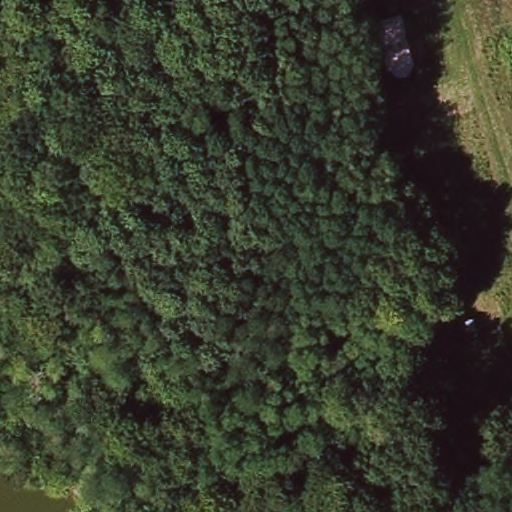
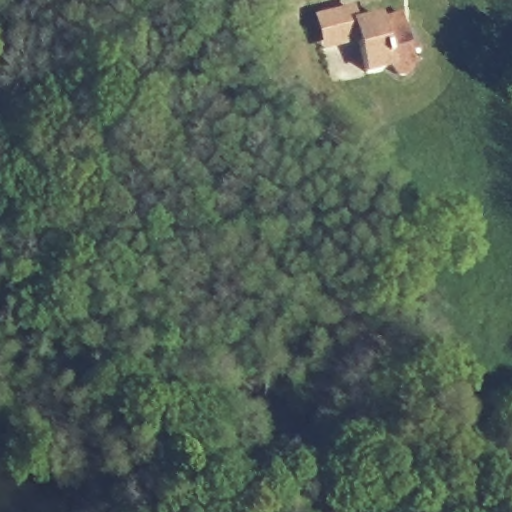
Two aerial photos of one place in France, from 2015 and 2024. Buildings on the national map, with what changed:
new [(410,69),(412,74),(402,78),(394,73),(385,34),(392,69),(365,77),(356,43),(322,53),(312,16),(353,6),(357,20),(380,14),(382,21),(407,14),(410,29),(419,66),(410,69)]
demolished [(416,71),(407,74),(409,79),(399,83),(390,78),(382,39),(407,34),(416,71)]

